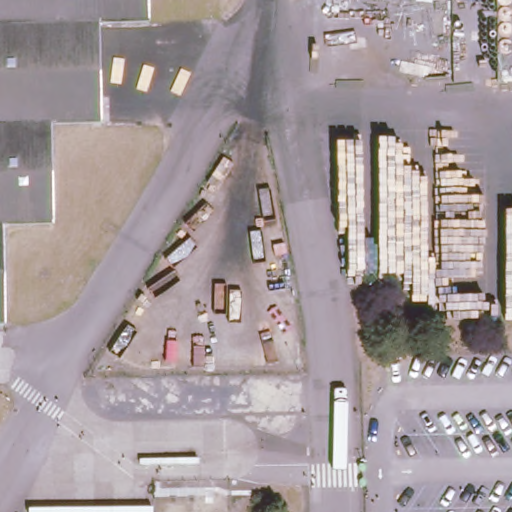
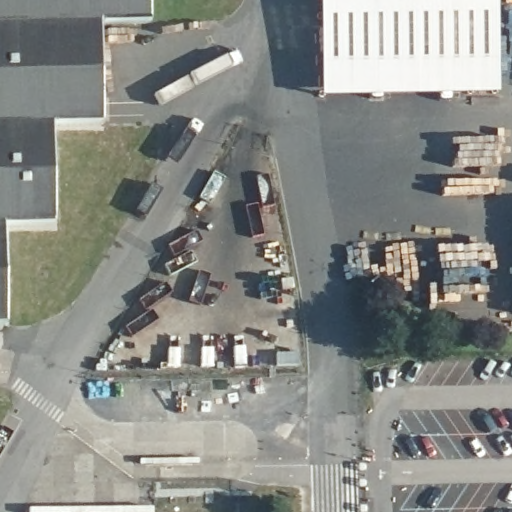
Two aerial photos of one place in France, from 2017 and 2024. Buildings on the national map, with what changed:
unchanged [(93,21),(96,121),(45,122),(48,222),(0,223),(0,0),(143,0),(143,19),(93,21)]
new [(495,0),(499,92),(319,97),(317,0),(495,0)]

